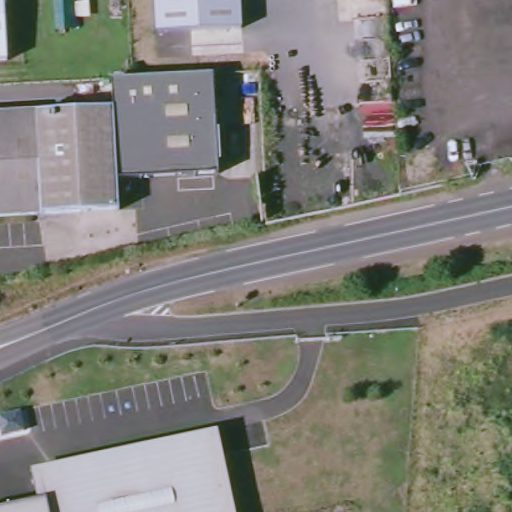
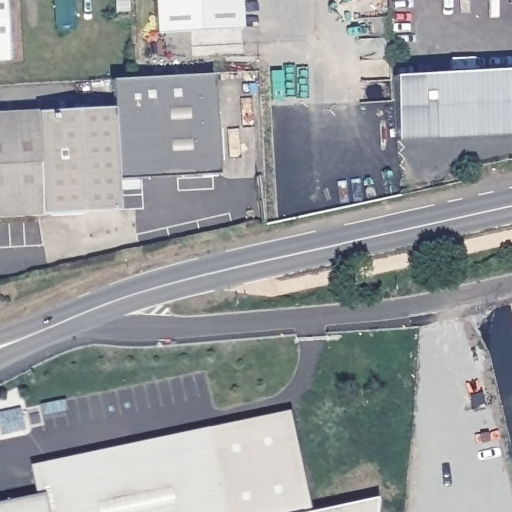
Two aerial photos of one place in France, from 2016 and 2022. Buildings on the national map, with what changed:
unchanged [(0,61),(0,0),(1,0),(3,60),(0,61)]
unchanged [(240,0),(241,29),(157,34),(155,0),(240,0)]
new [(394,144),(394,77),(512,70),(512,138),(394,144)]
unchanged [(112,80),(133,79),(214,75),(218,175),(116,179),(118,210),(43,214),(0,216),(0,112),(113,106),(112,80)]
new [(214,435),(291,420),(312,512),(231,512),(214,435)]
unchanged [(41,472),(214,435),(231,512),(0,512),(0,507),(46,497),(41,472)]
new [(379,503),(379,512),(338,512),(379,503)]

